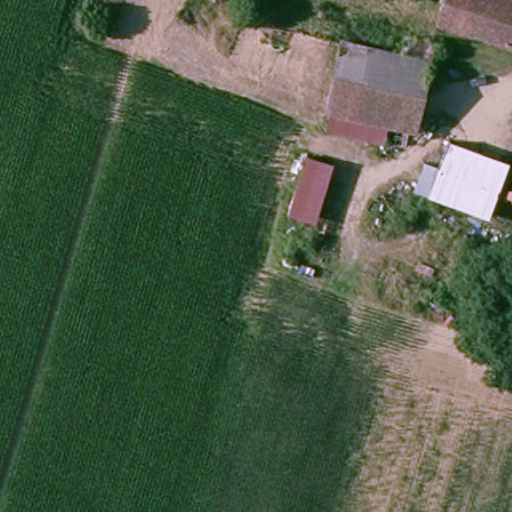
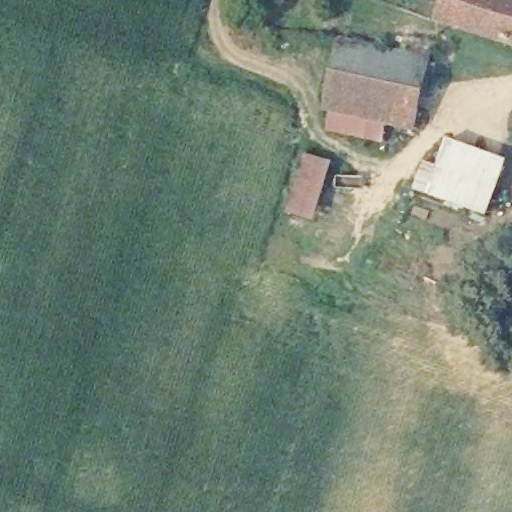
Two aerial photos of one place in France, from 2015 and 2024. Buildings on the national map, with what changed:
unchanged [(421,16),(426,0),(512,0),(512,44),(421,16)]
unchanged [(344,40),(391,52),(422,63),(405,127),(326,107),(330,95),(344,40)]
unchanged [(445,141),(475,150),(473,161),(510,174),(501,203),(435,182),(443,151),(445,141)]
unchanged [(329,161),(308,221),(289,218),(310,154),(329,161)]

